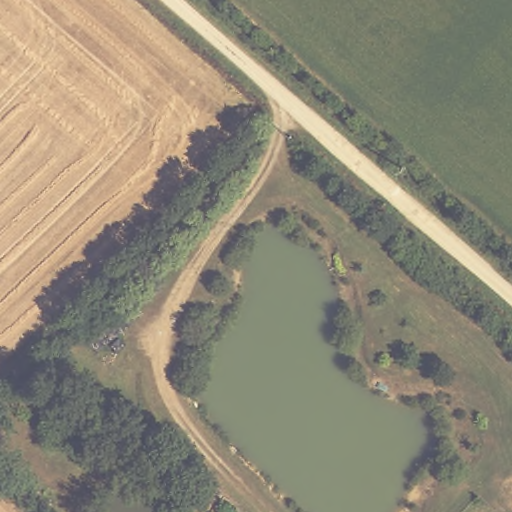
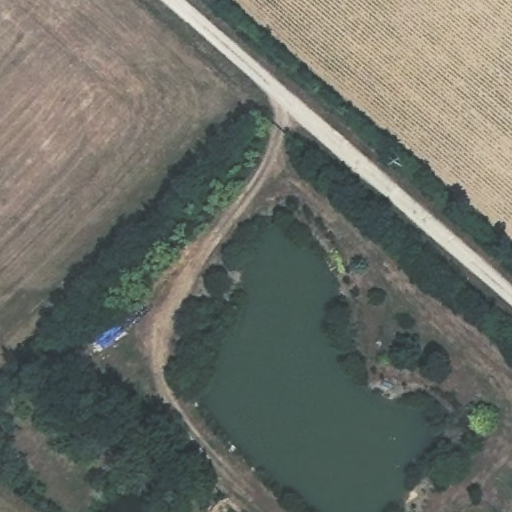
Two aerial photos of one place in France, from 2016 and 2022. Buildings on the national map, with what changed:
unchanged [(27,381),(22,376),(26,371),(32,375),(27,381)]
unchanged [(172,483),(160,472),(174,455),(187,466),(172,483)]

